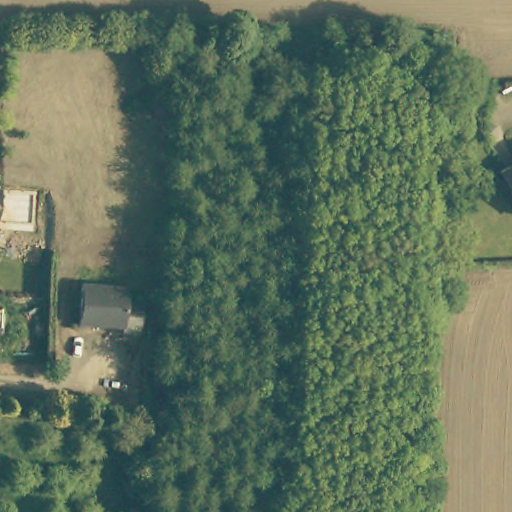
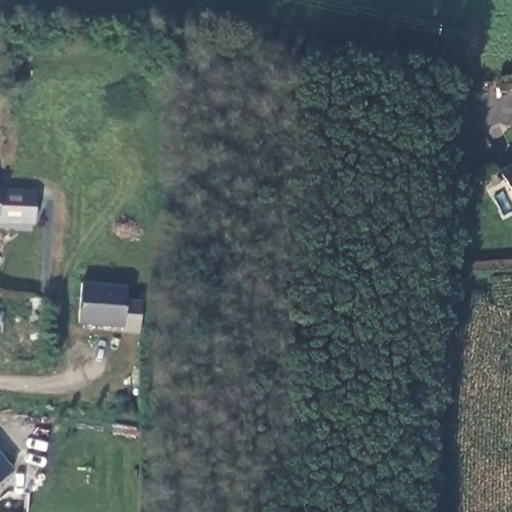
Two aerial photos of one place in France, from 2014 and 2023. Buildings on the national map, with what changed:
unchanged [(512,156),(512,210),(511,210),(496,160),(512,156)]
unchanged [(29,225),(0,225),(0,191),(30,192),(30,200),(45,201),(44,221),(29,221),(29,225)]
unchanged [(125,286),(125,300),(140,300),(139,329),(79,324),(80,285),(125,286)]
new [(0,480),(0,455),(12,469),(0,480)]

